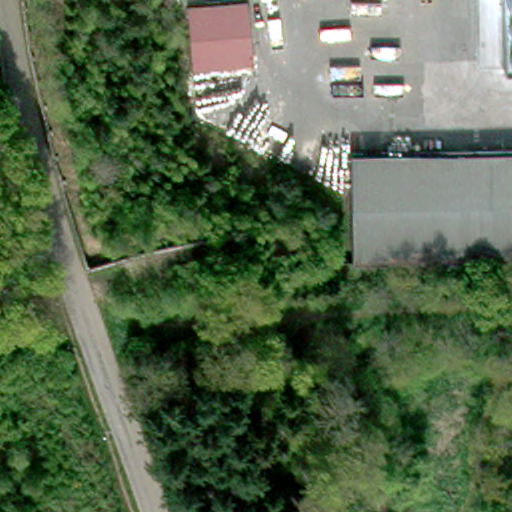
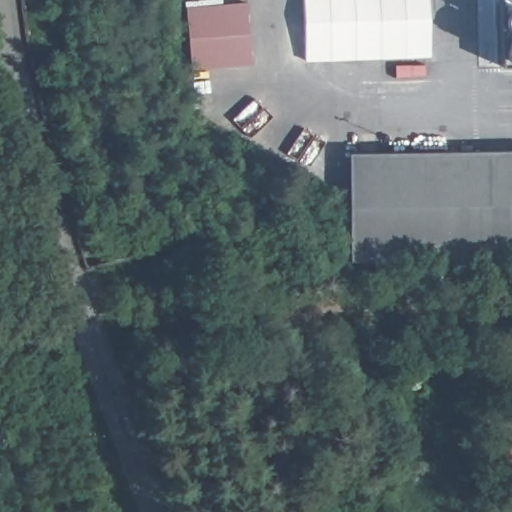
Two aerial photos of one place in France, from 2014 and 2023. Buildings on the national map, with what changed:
new [(307,61),(304,0),(429,0),(432,55),(307,61)]
unchanged [(505,67),(504,0),(512,0),(512,67),(505,67)]
unchanged [(261,69),(200,74),(195,13),(256,7),(261,69)]
unchanged [(355,261),(354,251),(353,152),(368,152),(512,150),(512,259),(355,261)]

